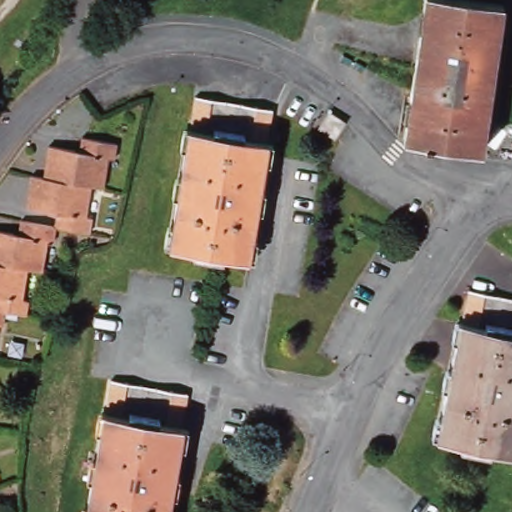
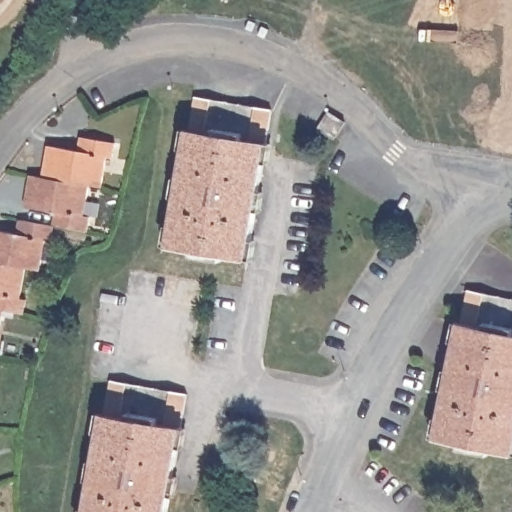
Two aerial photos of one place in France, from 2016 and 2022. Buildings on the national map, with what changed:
demolished [(403,135),(424,0),(477,0),(504,5),(481,148),(451,143),(403,135)]
unchanged [(191,126),(193,126),(199,96),(273,109),(250,255),(172,241),(191,126)]
unchanged [(330,139),(341,123),(350,128),(356,134),(345,149),(330,139)]
unchanged [(67,150),(99,156),(101,140),(135,145),(131,162),(126,161),(120,192),(109,190),(61,182),(67,150)]
unchanged [(61,182),(109,190),(104,221),(110,222),(107,237),(75,231),(73,230),(75,217),(45,211),(50,179),(61,182)]
unchanged [(66,244),(60,274),(46,272),(40,303),(47,304),(44,318),(23,314),(20,328),(16,328),(10,359),(0,357),(0,310),(10,312),(12,299),(0,296),(0,263),(0,264),(7,233),(36,239),(40,224),(73,230),(75,231),(71,245),(66,244)]
unchanged [(462,326),(463,326),(470,291),(512,299),(512,454),(440,440),(462,326)]
unchanged [(107,411),(108,411),(114,380),(188,394),(184,424),(185,430),(170,512),(89,512),(107,411)]

